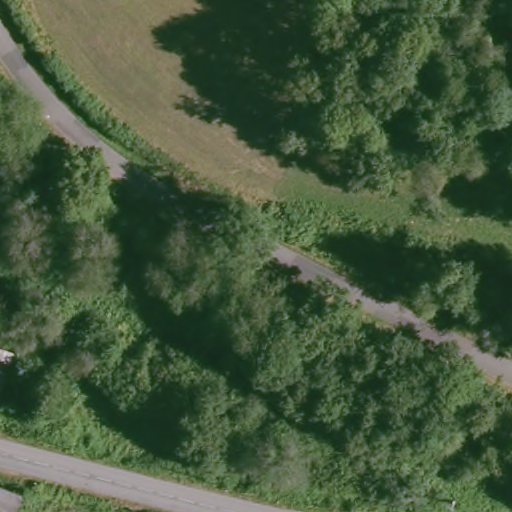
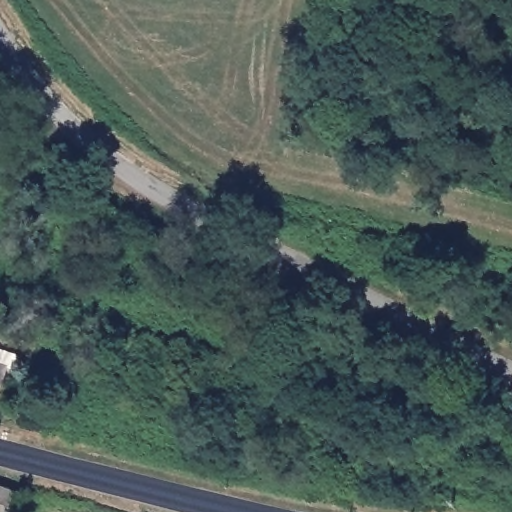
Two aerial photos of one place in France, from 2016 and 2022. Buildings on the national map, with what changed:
unchanged [(10,371),(3,370),(0,380),(0,353),(14,357),(10,371)]
unchanged [(16,512),(0,512),(0,483),(22,491),(16,512)]

